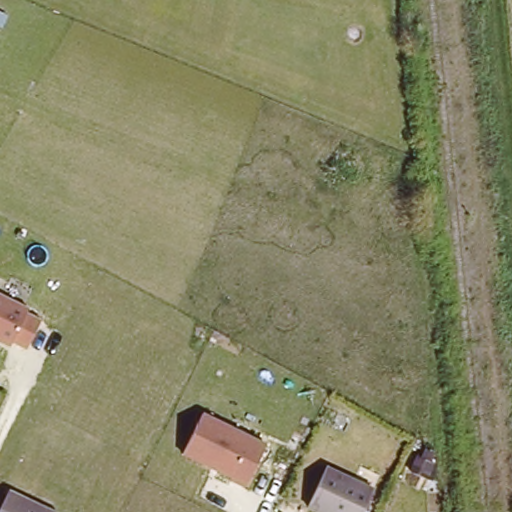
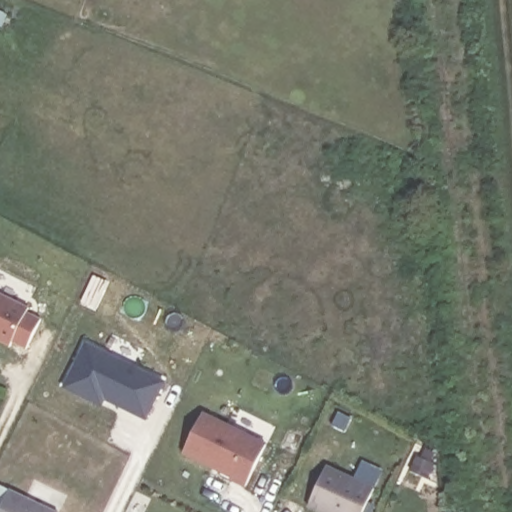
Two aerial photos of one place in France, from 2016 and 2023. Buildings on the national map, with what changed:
unchanged [(25,356),(0,343),(0,296),(42,318),(25,356)]
new [(86,342),(165,382),(147,420),(105,400),(102,406),(64,388),(86,342)]
unchanged [(266,445),(244,487),(181,454),(202,413),(266,445)]
unchanged [(361,512),(322,512),(306,505),(323,460),(372,483),(361,512)]
unchanged [(57,512),(0,512),(0,504),(9,486),(58,510),(57,512)]

